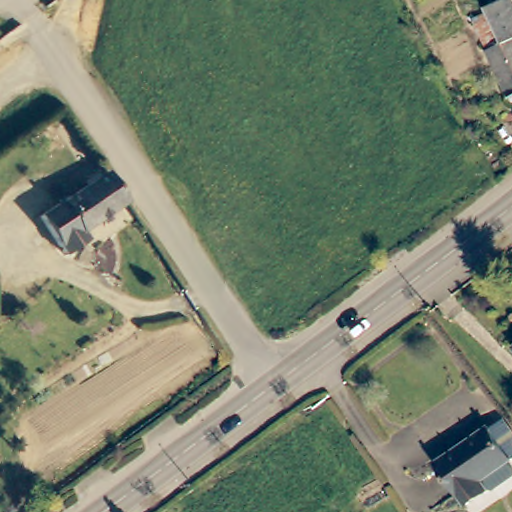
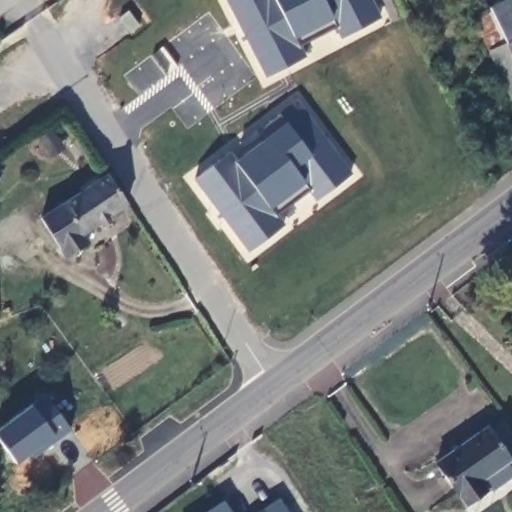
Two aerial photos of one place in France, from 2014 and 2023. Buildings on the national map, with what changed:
new [(382,18),(342,38),(336,27),(301,45),(306,56),(266,76),(227,0),(372,0),(382,18)]
unchanged [(512,7),(512,58),(487,8),(504,0),(508,0),(512,7)]
unchanged [(512,90),(507,92),(497,71),(472,15),(487,8),(512,58),(512,90)]
new [(228,151),(234,159),(266,135),(260,127),(296,100),(352,175),(316,201),(309,191),(277,215),(284,225),(248,252),(192,178),(228,151)]
unchanged [(127,203),(83,234),(89,241),(67,254),(42,218),(107,172),(127,203)]
unchanged [(512,339),(512,345),(510,341),(512,339)]
new [(45,395),(71,429),(40,452),(37,448),(16,463),(0,442),(0,428),(45,395)]
unchanged [(511,467),(510,473),(488,488),(483,487),(462,502),(432,461),(481,425),(484,429),(496,420),(512,442),(512,447),(503,454),(505,457),(504,458),(511,467)]
new [(288,512),(256,512),(278,497),(288,512)]
new [(232,512),(204,512),(224,499),(232,512)]

